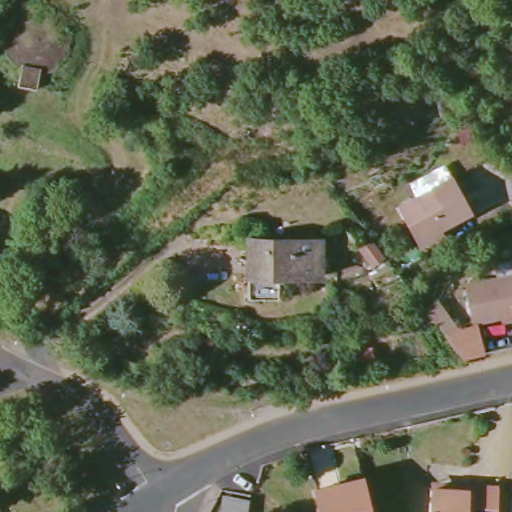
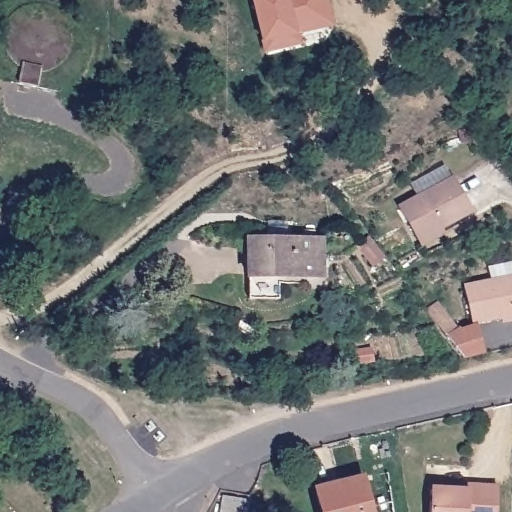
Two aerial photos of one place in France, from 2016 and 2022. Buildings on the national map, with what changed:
new [(251,0),(326,0),(332,26),(298,33),(300,44),(262,53),(258,41),(251,0)]
unchanged [(420,246),(415,236),(399,207),(453,178),(471,212),(440,229),(443,234),(420,246)]
unchanged [(280,272),(280,295),(248,295),(248,234),(321,234),(321,272),(280,272)]
unchanged [(360,251),(357,246),(368,237),(372,241),(385,256),(373,266),(360,251)]
unchanged [(503,322),(502,317),(473,323),(466,286),(512,278),(512,320),(503,322)]
unchanged [(362,478),(370,512),(321,512),(315,489),(362,478)]
unchanged [(497,512),(430,512),(431,489),(432,484),(468,486),(498,488),(497,512)]
unchanged [(222,493),(252,495),(249,512),(218,512),(222,493)]

